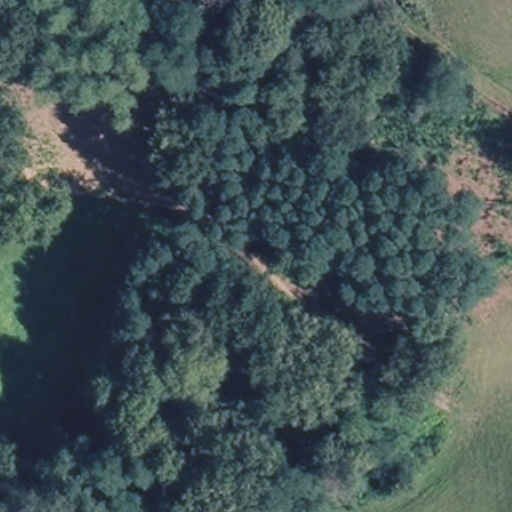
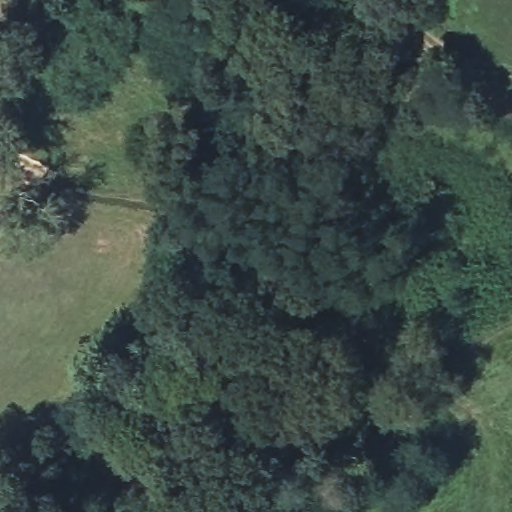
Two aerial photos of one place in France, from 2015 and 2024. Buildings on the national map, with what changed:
[]

